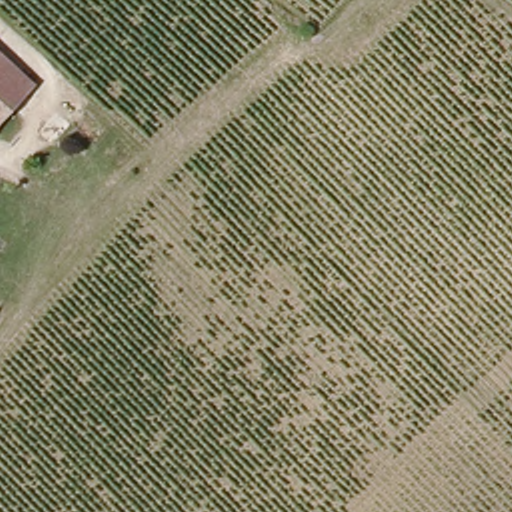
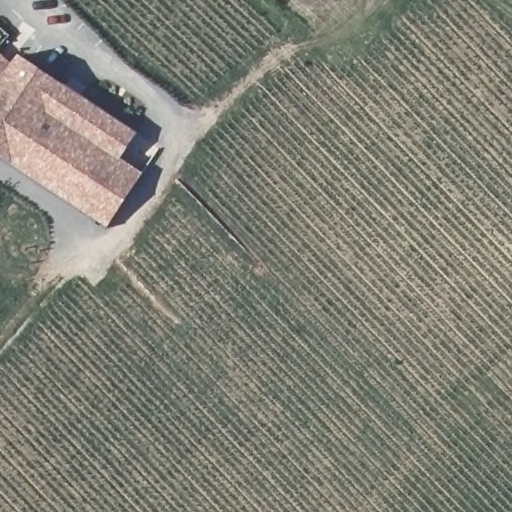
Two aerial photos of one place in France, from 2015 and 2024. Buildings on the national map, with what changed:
new [(18,55),(135,136),(120,158),(144,174),(106,229),(0,157),(0,53),(12,64),(18,55)]
demolished [(11,116),(0,106),(0,55),(36,89),(11,116)]
demolished [(0,128),(0,106),(11,116),(0,128)]

